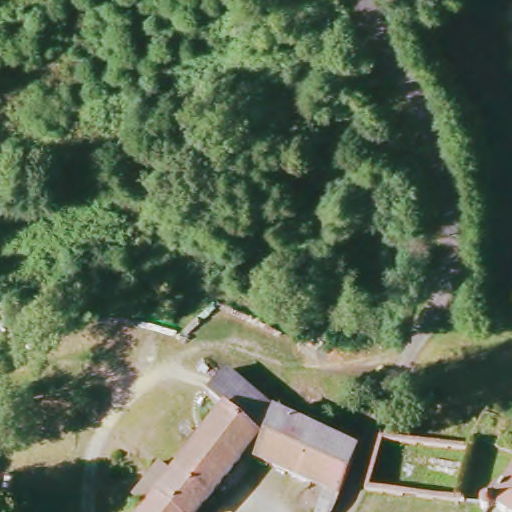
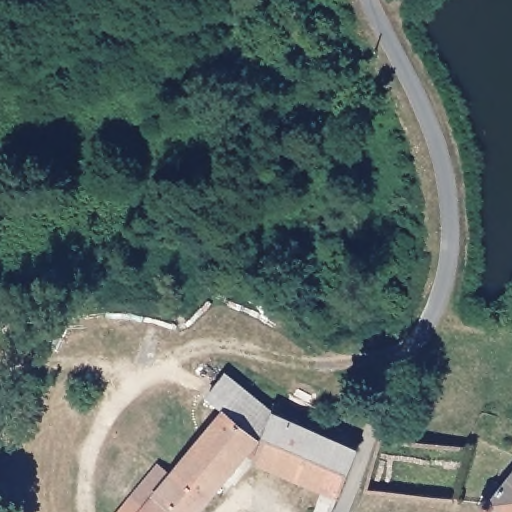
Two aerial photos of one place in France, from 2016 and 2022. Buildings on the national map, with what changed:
unchanged [(331,512),(313,512),(321,491),(260,462),(245,452),(205,501),(172,472),(175,470),(224,408),(209,392),(227,372),(276,416),(356,447),(331,512)]
unchanged [(172,472),(205,501),(196,512),(144,512),(147,509),(134,500),(161,465),(164,461),(175,470),(172,472)]
unchanged [(495,512),(484,512),(481,511),(479,503),(493,481),(501,483),(512,470),(512,512),(500,512),(497,511),(495,512)]

